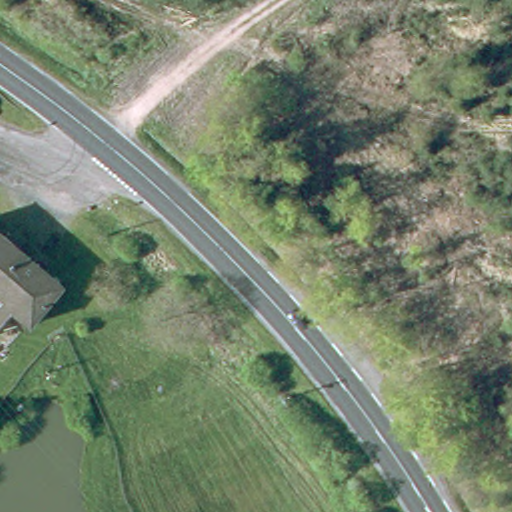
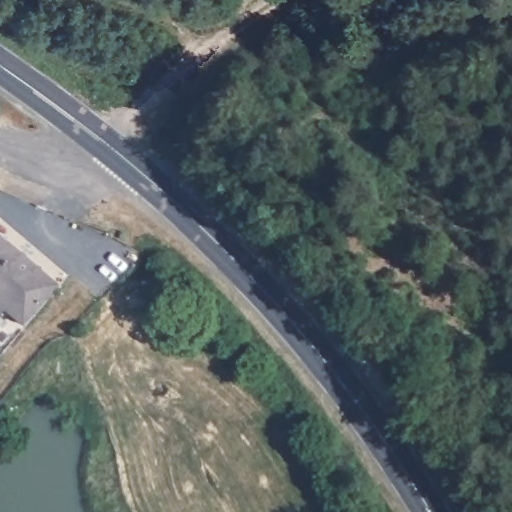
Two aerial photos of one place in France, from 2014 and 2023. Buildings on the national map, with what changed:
unchanged [(79,303),(45,342),(28,327),(6,351),(0,346),(0,235),(79,303)]

